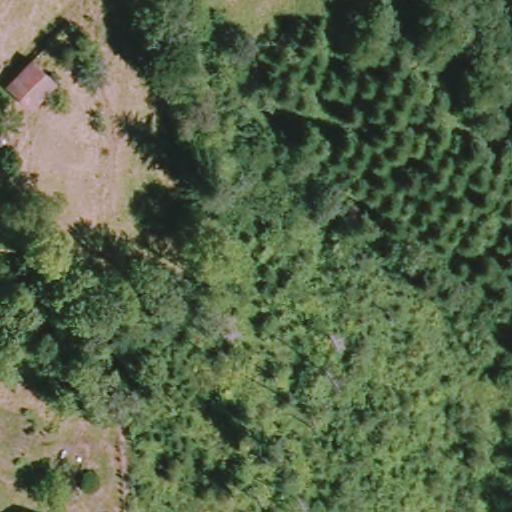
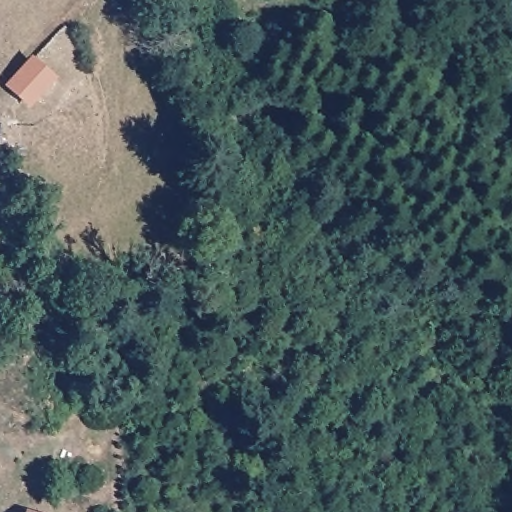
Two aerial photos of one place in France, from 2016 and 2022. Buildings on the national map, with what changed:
unchanged [(56,80),(36,104),(10,86),(32,62),(56,80)]
unchanged [(32,507),(40,512),(29,512),(32,507)]

